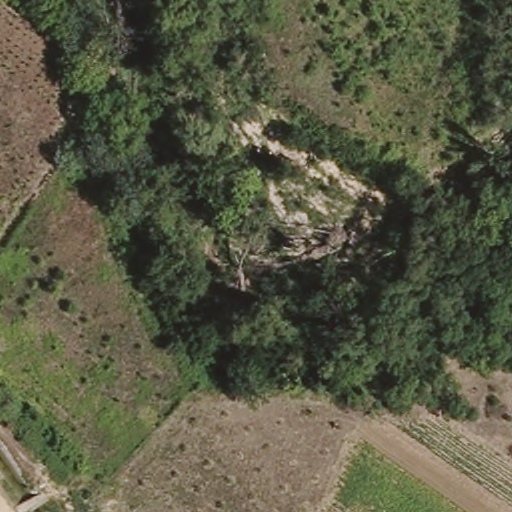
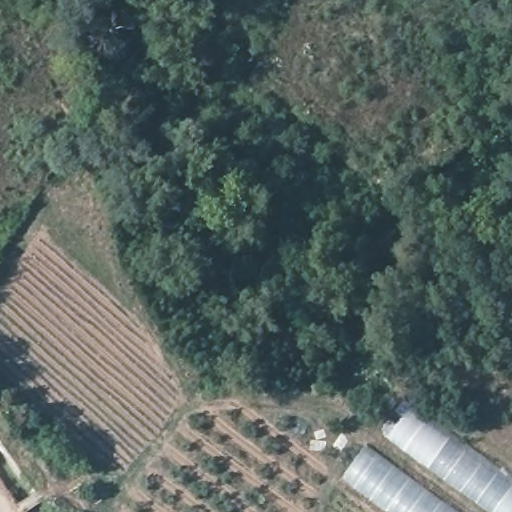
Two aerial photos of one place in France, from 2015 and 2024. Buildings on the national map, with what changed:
new [(512,512),(490,512),(387,437),(413,405),(512,477),(512,512)]
new [(389,512),(342,478),(367,443),(461,512),(389,512)]

